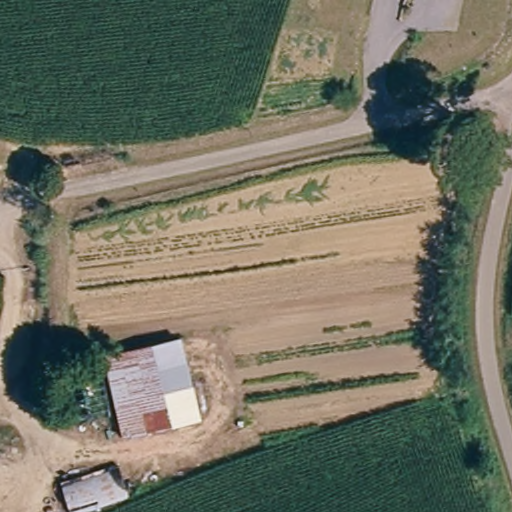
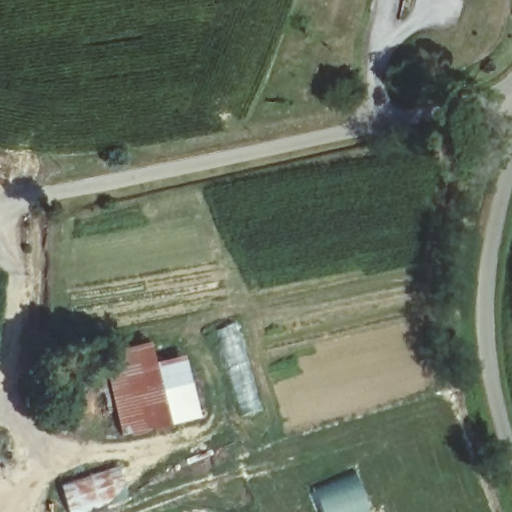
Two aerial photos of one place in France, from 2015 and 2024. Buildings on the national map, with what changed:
unchanged [(180,336),(200,421),(120,437),(101,354),(180,336)]
unchanged [(125,493),(70,511),(60,479),(114,459),(125,493)]
new [(323,512),(314,488),(356,471),(370,510),(365,512),(323,512)]

